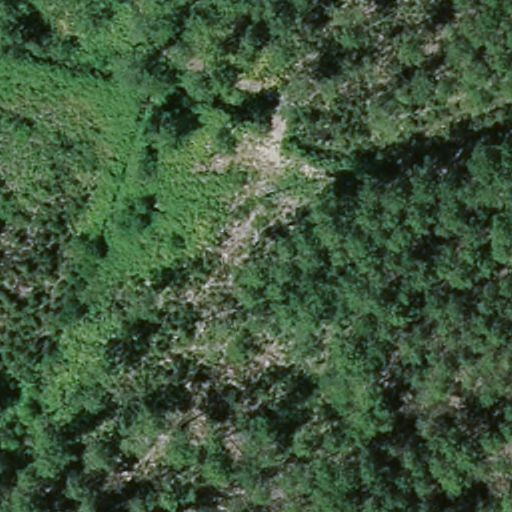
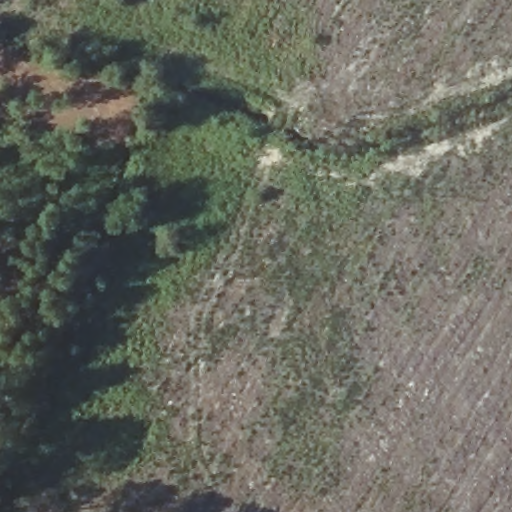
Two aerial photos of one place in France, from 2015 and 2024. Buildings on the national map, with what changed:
[]

